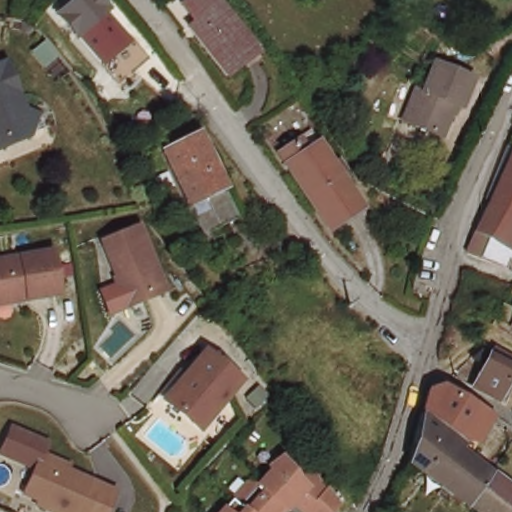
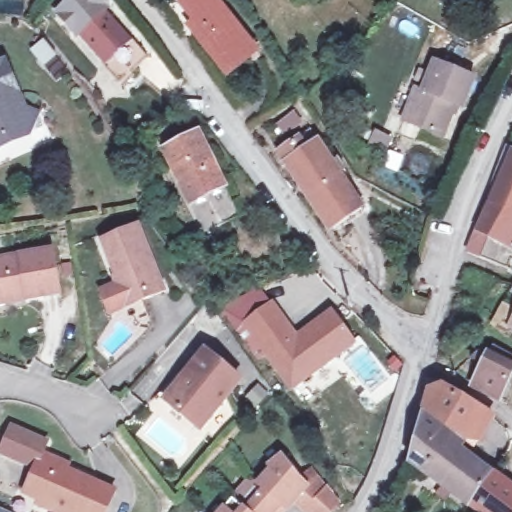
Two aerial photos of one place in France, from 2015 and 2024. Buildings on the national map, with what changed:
unchanged [(147,56),(121,81),(60,16),(76,0),(95,0),(147,56)]
unchanged [(263,56),(230,81),(192,32),(188,36),(170,12),(185,0),(220,0),(263,56)]
unchanged [(35,125),(17,135),(13,145),(0,152),(0,66),(10,61),(31,104),(28,112),(35,125)]
unchanged [(476,82),(462,113),(455,110),(441,141),(403,125),(416,91),(425,95),(438,65),(476,82)]
unchanged [(227,201),(191,220),(153,135),(187,120),(227,201)]
unchanged [(360,208),(329,231),(274,150),(306,129),(360,208)]
unchanged [(511,258),(479,253),(470,249),(479,226),(512,149),(512,256),(511,258)]
unchanged [(168,287),(113,310),(104,287),(122,280),(103,237),(139,222),(168,287)]
unchanged [(66,292),(34,298),(0,304),(0,260),(58,249),(66,292)]
new [(272,301),(296,336),(332,311),(354,343),(290,386),(245,320),(272,301)]
unchanged [(511,322),(509,317),(512,308),(512,323),(511,322)]
unchanged [(490,346),(498,353),(505,347),(512,353),(512,380),(496,400),(474,385),(490,365),(482,355),(480,354),(482,352),(490,346)]
unchanged [(242,381),(202,430),(171,406),(193,380),(187,375),(205,352),(242,381)]
unchanged [(423,418),(434,385),(492,411),(485,430),(473,426),(467,442),(423,418)]
unchanged [(467,442),(463,451),(494,474),(474,508),(428,473),(419,486),(405,478),(423,418),(467,442)]
unchanged [(0,455),(0,450),(9,428),(45,442),(40,455),(55,461),(60,467),(115,490),(107,512),(53,512),(36,505),(38,500),(23,494),(33,469),(0,455)]
unchanged [(318,470),(330,485),(333,486),(345,502),(336,512),(316,512),(300,499),(297,503),(290,499),(279,512),(225,512),(252,482),(263,481),(277,467),(276,463),(288,455),(306,477),(318,470)]
unchanged [(494,474),(512,487),(512,512),(479,512),(474,508),(494,474)]

